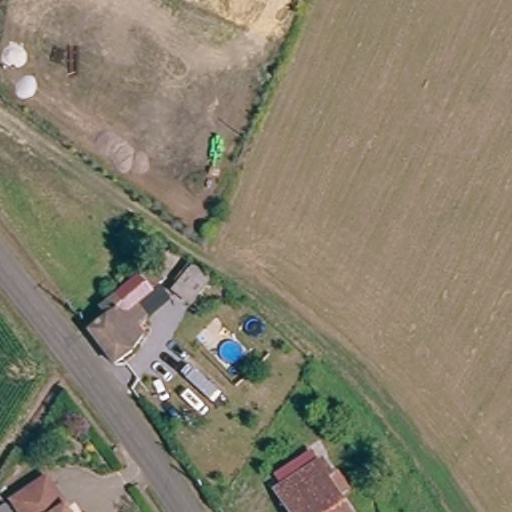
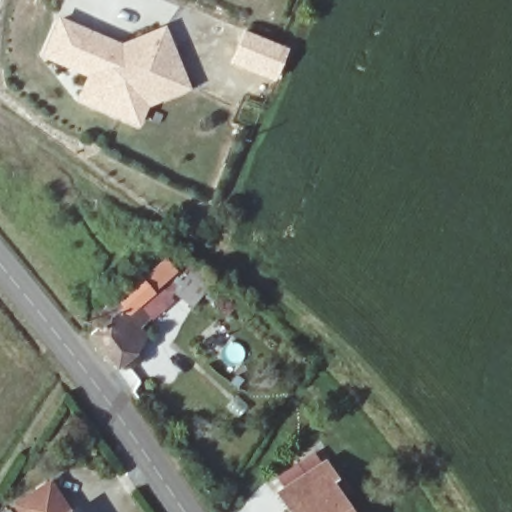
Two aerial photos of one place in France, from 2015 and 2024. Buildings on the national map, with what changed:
new [(189,88),(147,106),(139,126),(78,99),(87,76),(40,56),(58,16),(121,43),(164,27),(189,88)]
new [(229,62),(243,28),(287,47),(273,80),(229,62)]
unchanged [(194,266),(209,278),(187,307),(171,295),(194,266)]
unchanged [(149,294),(135,306),(144,318),(133,327),(140,335),(130,354),(111,368),(110,366),(87,334),(105,319),(97,309),(135,278),(149,294)]
unchanged [(332,478),(354,512),(296,512),(281,490),(326,460),(336,475),(332,478)]
unchanged [(69,504),(74,512),(23,512),(15,499),(47,478),(66,507),(69,504)]
unchanged [(0,512),(0,511),(9,505),(13,512),(0,512)]

